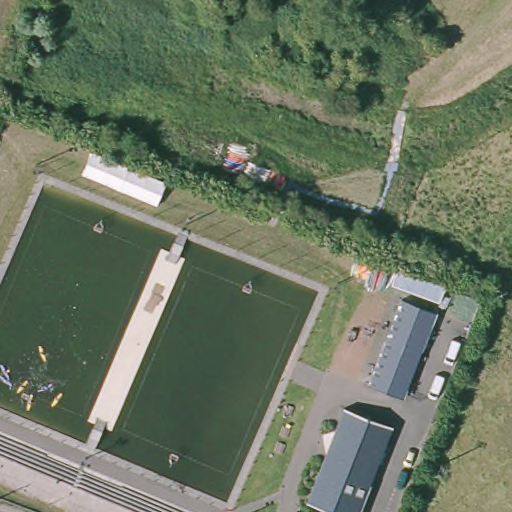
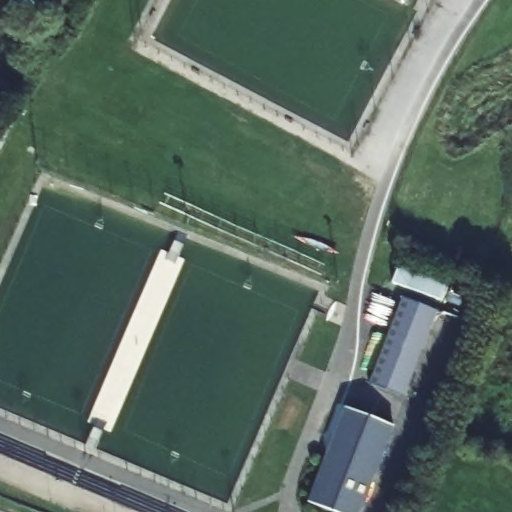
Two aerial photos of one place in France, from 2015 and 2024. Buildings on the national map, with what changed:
unchanged [(435,313),(402,400),(367,387),(400,300),(435,313)]
unchanged [(387,429),(354,512),(317,512),(300,506),(338,410),(387,429)]
unchanged [(92,490),(87,504),(70,496),(75,482),(92,490)]

